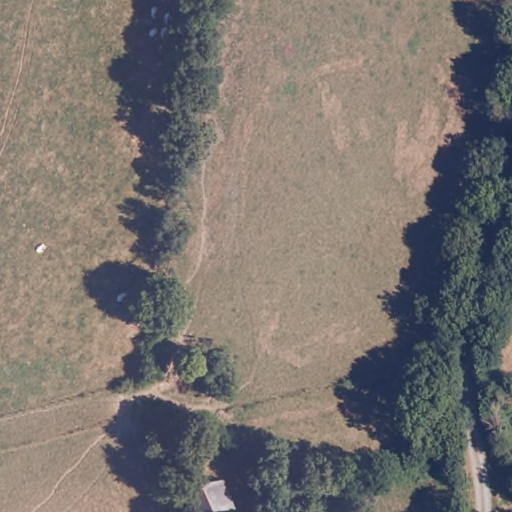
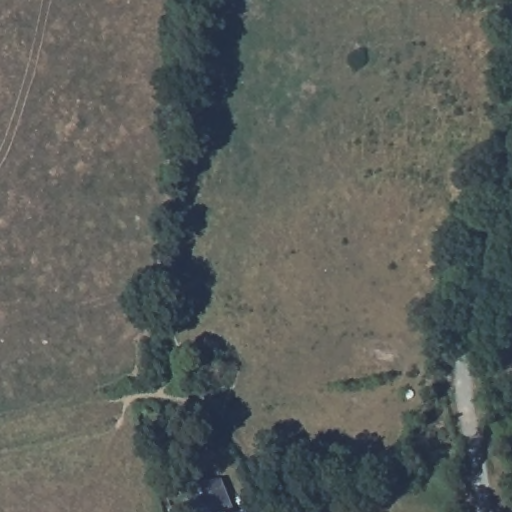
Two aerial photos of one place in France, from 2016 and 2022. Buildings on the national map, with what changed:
unchanged [(206,510),(193,512),(183,512),(177,474),(204,471),(218,508),(237,507),(237,512),(206,512),(206,510)]

